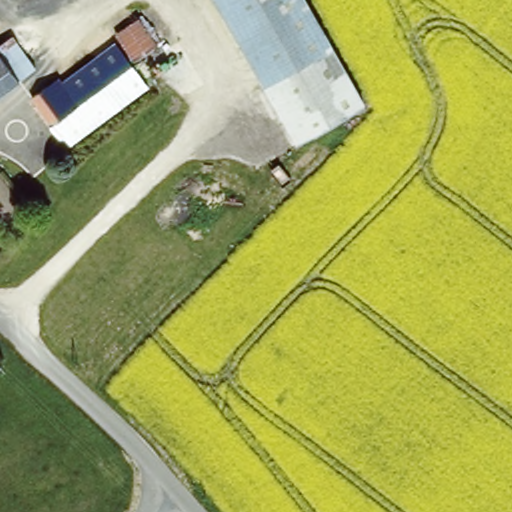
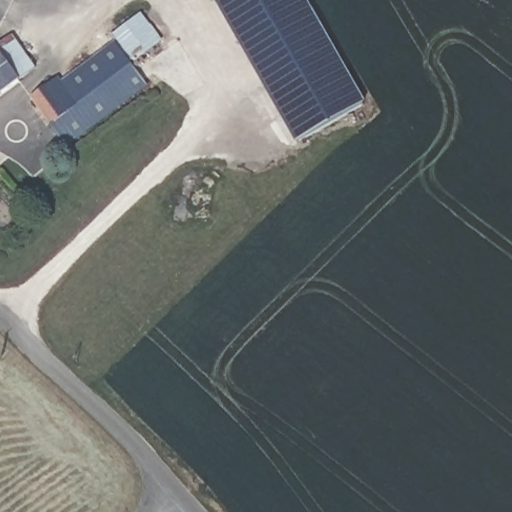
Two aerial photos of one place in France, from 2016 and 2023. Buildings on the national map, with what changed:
unchanged [(215,0),(300,0),(329,51),(266,89),(215,0)]
unchanged [(141,16),(159,46),(133,64),(114,33),(141,16)]
unchanged [(13,45),(37,76),(19,90),(0,104),(0,54),(13,45)]
unchanged [(60,77),(64,82),(114,45),(147,88),(68,148),(31,100),(60,77)]
unchanged [(329,51),(344,77),(281,116),(266,89),(329,51)]
unchanged [(344,77),(364,110),(299,146),(281,116),(344,77)]

